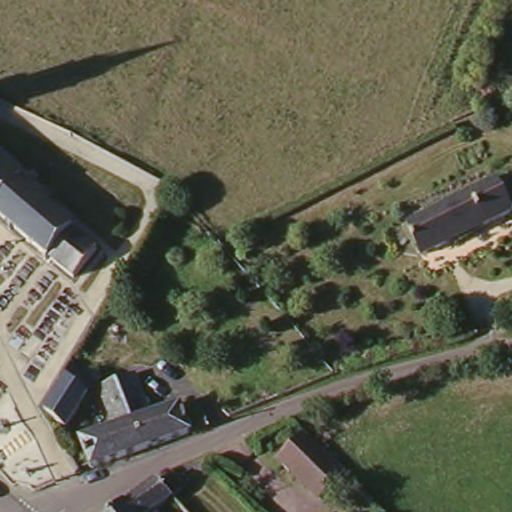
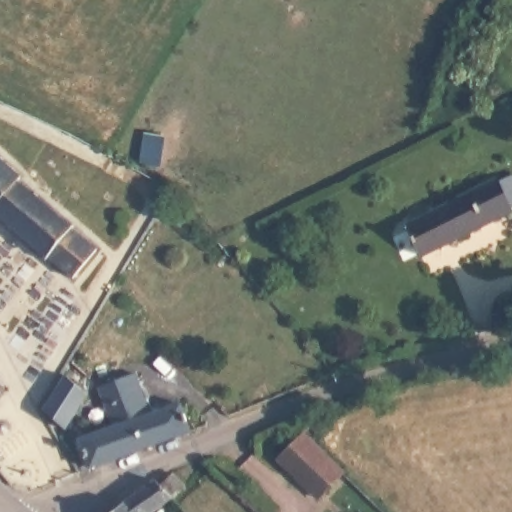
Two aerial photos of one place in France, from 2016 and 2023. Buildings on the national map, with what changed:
unchanged [(16,184),(97,251),(72,281),(0,219),(0,164),(18,180),(16,184)]
unchanged [(501,179),(512,200),(512,213),(425,257),(409,226),(501,179)]
unchanged [(71,359),(97,382),(65,431),(40,409),(71,359)]
unchanged [(80,440),(114,427),(98,388),(138,372),(154,413),(184,402),(195,432),(119,459),(91,470),(80,440)]
unchanged [(343,473),(318,499),(278,458),(303,434),(343,473)]
unchanged [(151,512),(112,512),(120,506),(151,482),(158,489),(174,475),(181,486),(151,512)]

